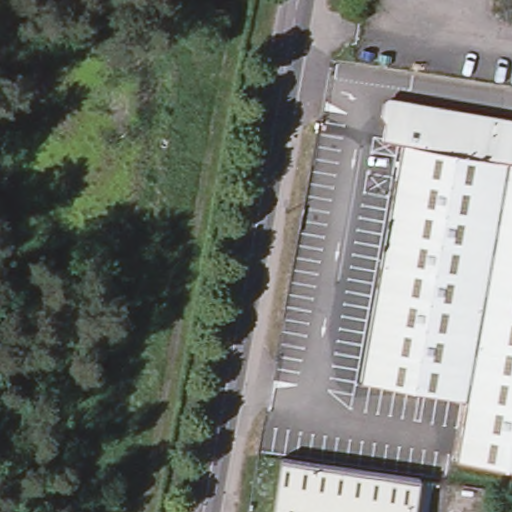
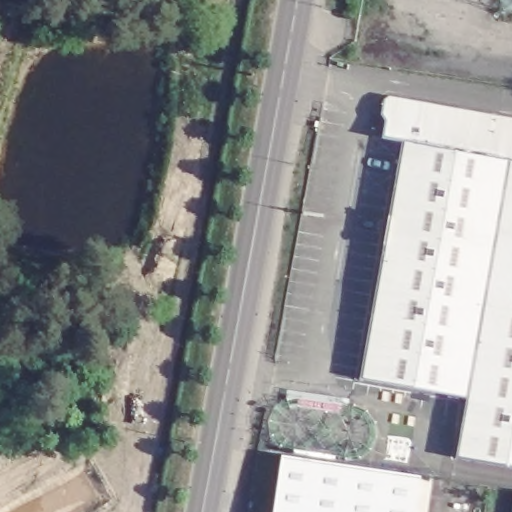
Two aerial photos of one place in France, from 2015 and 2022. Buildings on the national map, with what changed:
unchanged [(402,142),(381,138),(385,121),(380,113),(382,103),(390,98),(512,120),(512,468),(455,458),(465,399),(508,160),(402,142)]
unchanged [(508,160),(465,399),(358,380),(402,142),(508,160)]
unchanged [(411,512),(270,512),(278,455),(417,475),(411,512)]

